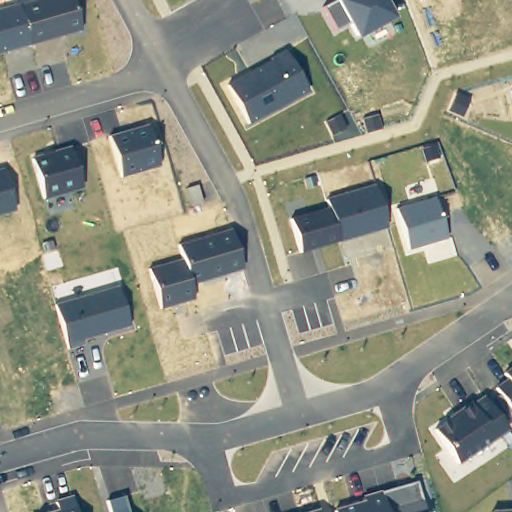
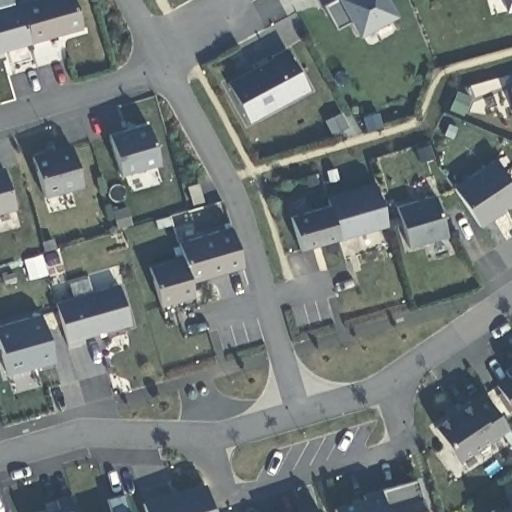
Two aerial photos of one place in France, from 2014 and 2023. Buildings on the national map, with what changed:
unchanged [(0,8),(29,0),(71,0),(81,30),(0,53),(0,8)]
unchanged [(334,0),(386,0),(396,18),(358,39),(350,23),(336,31),(323,7),(334,0)]
new [(503,0),(512,0),(512,12),(506,14),(503,0)]
unchanged [(250,124),(227,84),(272,61),(269,57),(284,49),(310,93),(250,124)]
unchanged [(120,178),(109,136),(148,125),(160,167),(120,178)]
unchanged [(44,199),(32,158),(72,147),(84,188),(44,199)]
new [(454,189),(496,161),(512,183),(512,207),(482,228),(454,189)]
unchanged [(0,169),(4,168),(15,211),(0,215),(0,169)]
unchanged [(301,252),(291,218),(329,207),(327,198),(375,185),(387,228),(301,252)]
unchanged [(409,249),(398,208),(436,197),(447,238),(409,249)]
unchanged [(161,309),(150,268),(182,259),(177,244),(232,229),(243,269),(191,284),(194,299),(161,309)]
unchanged [(83,340),(84,344),(69,348),(56,303),(118,286),(130,327),(83,340)]
new [(0,345),(0,327),(42,316),(55,362),(8,377),(0,345)]
unchanged [(496,387),(508,379),(503,372),(512,366),(512,411),(496,387)]
unchanged [(460,464),(435,428),(484,394),(509,430),(460,464)]
unchanged [(335,512),(334,509),(363,501),(362,496),(417,482),(425,512),(335,512)]
new [(204,485),(212,512),(146,512),(143,501),(204,485)]
unchanged [(55,501),(72,495),(77,512),(51,512),(58,510),(55,501)]
unchanged [(111,512),(107,501),(125,496),(129,512),(111,512)]
unchanged [(318,512),(307,512),(317,509),(318,512)]

